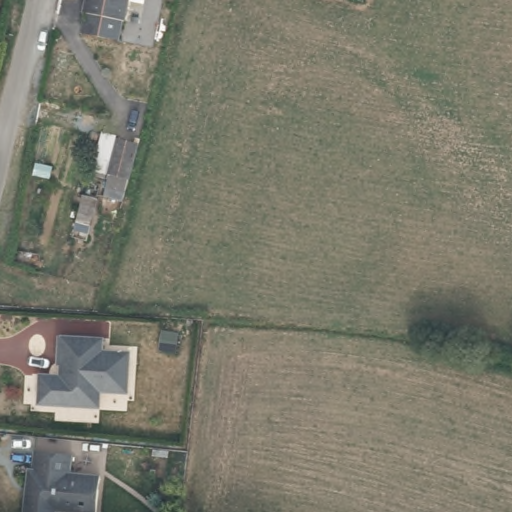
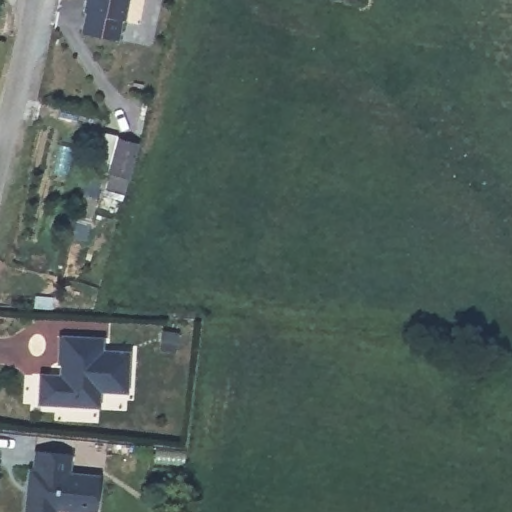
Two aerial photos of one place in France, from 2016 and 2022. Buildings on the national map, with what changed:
unchanged [(118,20),(113,42),(79,35),(84,14),(80,14),(84,0),(127,0),(122,21),(118,20)]
unchanged [(124,182),(121,196),(106,192),(109,177),(106,177),(113,144),(136,147),(129,182),(124,182)]
unchanged [(85,403),(39,401),(40,370),(60,372),(60,360),(59,360),(60,332),(104,333),(104,347),(130,348),(129,390),(100,388),(101,403),(85,403)]
unchanged [(36,466),(36,447),(74,451),(73,470),(102,472),(99,510),(58,507),(58,512),(26,512),(28,501),(29,483),(30,465),(36,466)]

